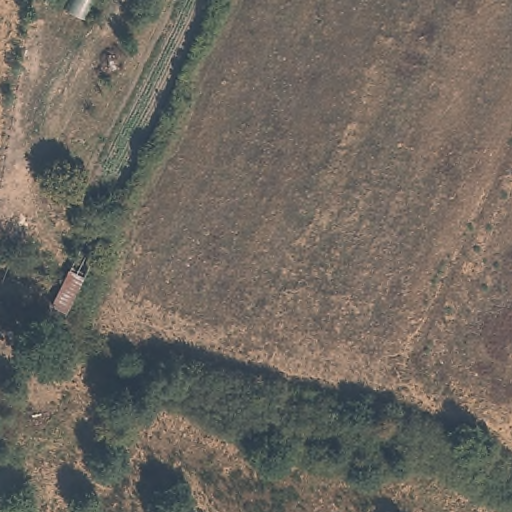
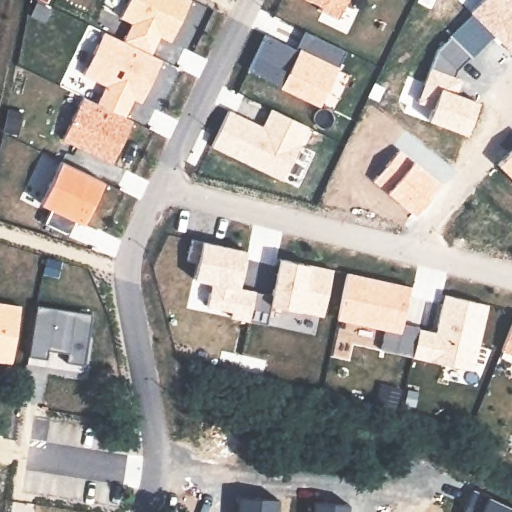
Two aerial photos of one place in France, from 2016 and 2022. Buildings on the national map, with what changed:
new [(159,38),(151,55),(162,60),(143,104),(133,100),(124,118),(134,122),(113,165),(61,140),(82,96),(96,101),(104,86),(83,76),(104,30),(123,39),(131,24),(118,18),(127,0),(192,0),(172,42),(159,38)]
new [(319,11),(322,6),(310,0),(347,0),(338,19),(319,11)]
new [(264,35),(295,49),(304,30),(347,50),(320,107),(278,88),(279,85),(249,71),(264,35)]
new [(229,109),(262,125),(270,109),(309,127),(283,181),(212,148),(229,109)]
new [(60,161),(104,181),(83,224),(74,221),(68,236),(43,224),(49,210),(39,205),(60,161)]
new [(232,313),(205,308),(209,284),(192,281),(197,263),(187,262),(193,238),(202,240),(202,241),(247,249),(240,287),(256,290),(255,292),(249,321),(230,319),(232,313)]
new [(255,292),(272,296),(274,289),(278,290),(284,260),(332,271),(323,316),(271,305),(267,325),(249,321),(255,292)]
new [(347,274),(411,287),(402,324),(419,328),(413,357),(381,350),(386,330),(337,319),(347,274)]
new [(419,328),(436,332),(444,295),(488,305),(474,369),(413,357),(419,328)]
new [(512,324),(512,357),(501,353),(512,324)]

